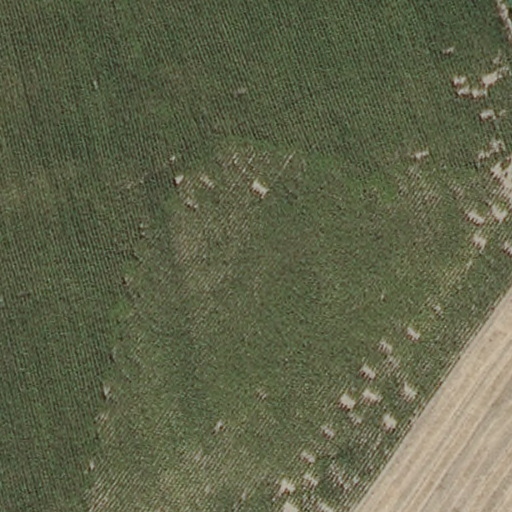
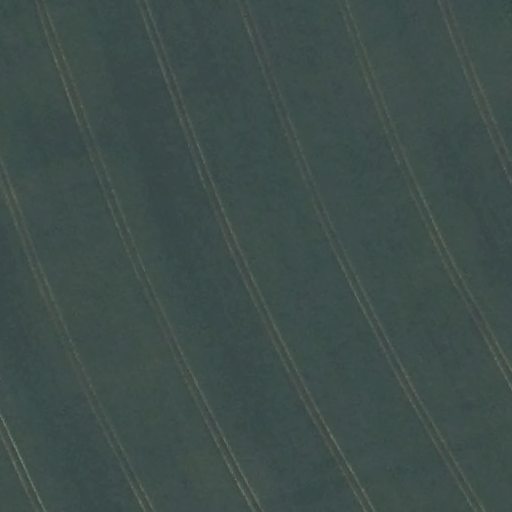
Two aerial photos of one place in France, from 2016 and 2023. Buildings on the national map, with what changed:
unchanged [(512,0),(512,3),(509,4),(508,0),(512,0)]

